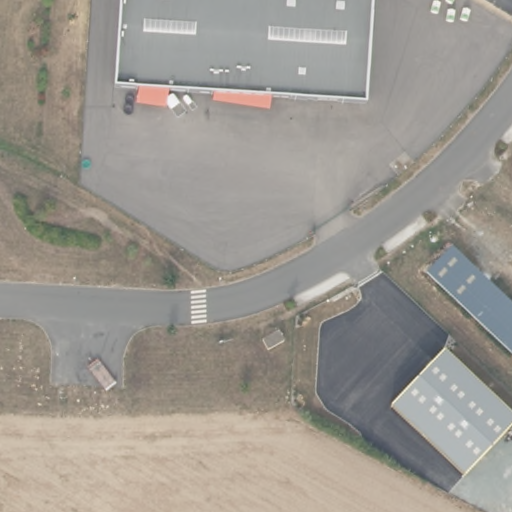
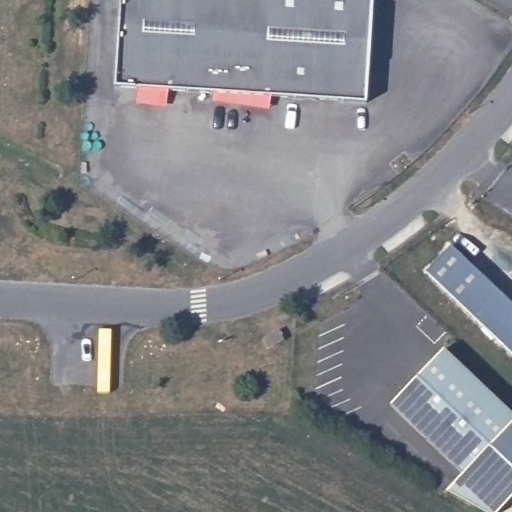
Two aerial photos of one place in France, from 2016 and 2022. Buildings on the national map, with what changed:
unchanged [(367,103),(267,97),(267,103),(214,100),(214,94),(115,87),(120,0),(373,0),(367,103)]
unchanged [(426,274),(451,247),(512,306),(512,355),(512,356),(426,274)]
unchanged [(280,331),(285,340),(271,348),(266,338),(280,331)]
unchanged [(512,425),(462,477),(389,405),(443,350),(512,417),(512,425)]
new [(462,477),(512,425),(512,497),(497,512),(479,512),(445,493),(461,476),(462,477)]

